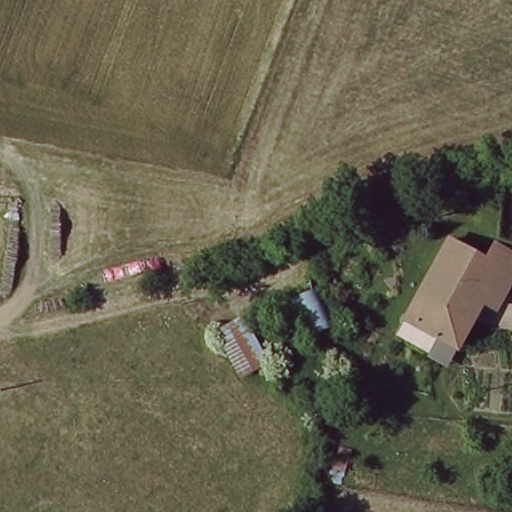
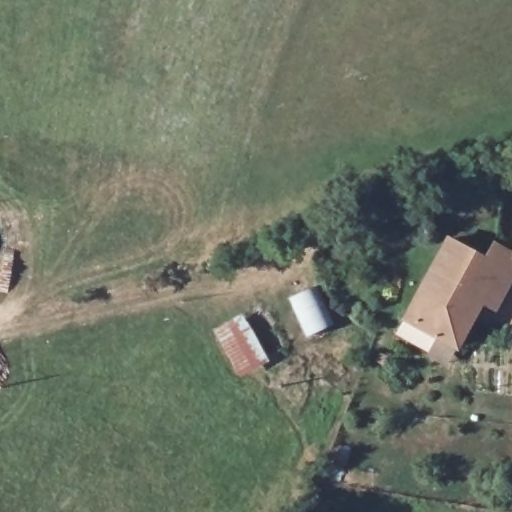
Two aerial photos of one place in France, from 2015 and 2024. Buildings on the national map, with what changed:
unchanged [(510,267),(512,248),(512,291),(508,291),(510,267)]
unchanged [(508,291),(492,332),(466,324),(454,352),(414,334),(448,262),(480,272),(485,259),(510,267),(508,291)]
unchanged [(335,329),(311,339),(293,300),(318,290),(335,329)]
unchanged [(269,361),(237,379),(225,353),(217,357),(207,334),(250,317),(269,361)]
unchanged [(512,344),(512,354),(510,344),(512,344)]

